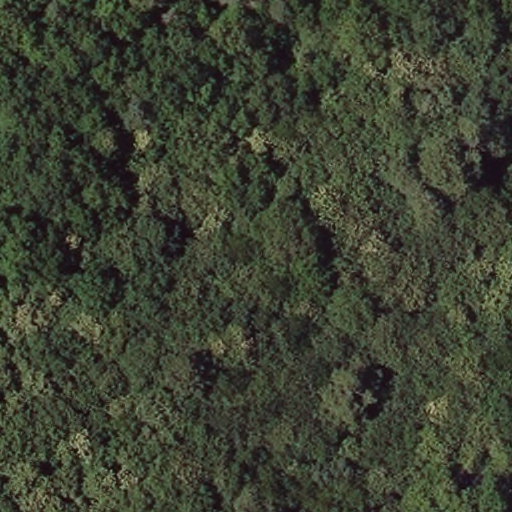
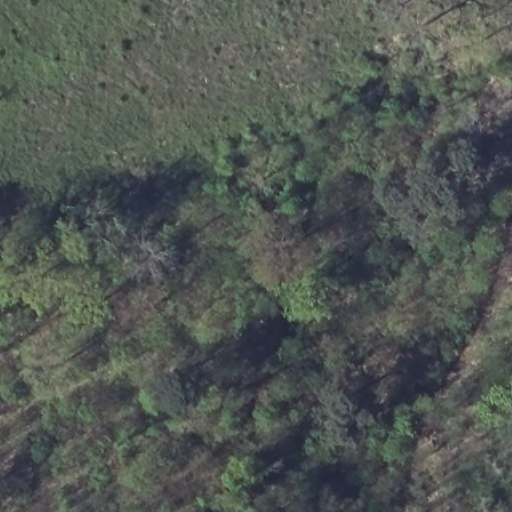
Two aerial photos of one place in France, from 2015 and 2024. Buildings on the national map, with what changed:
[]

